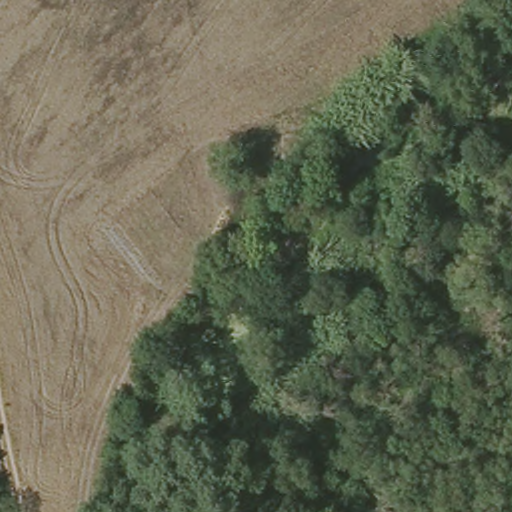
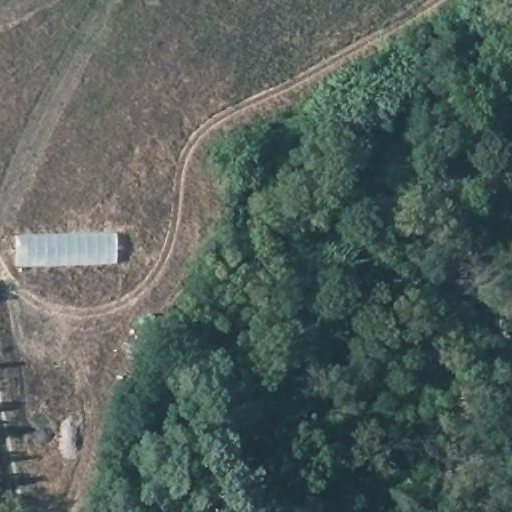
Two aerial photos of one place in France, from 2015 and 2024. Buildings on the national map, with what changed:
new [(81,231),(115,231),(117,263),(70,266),(15,266),(15,235),(81,231)]

